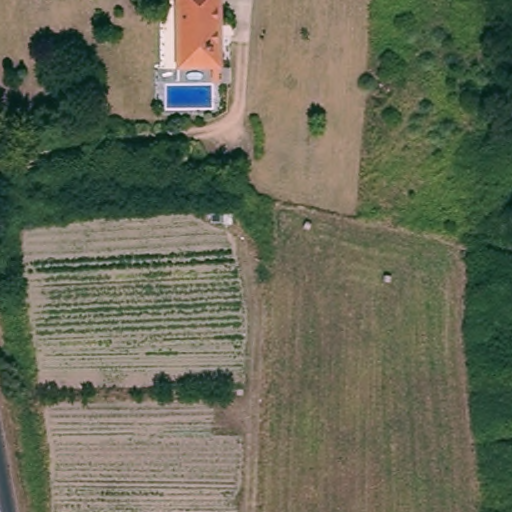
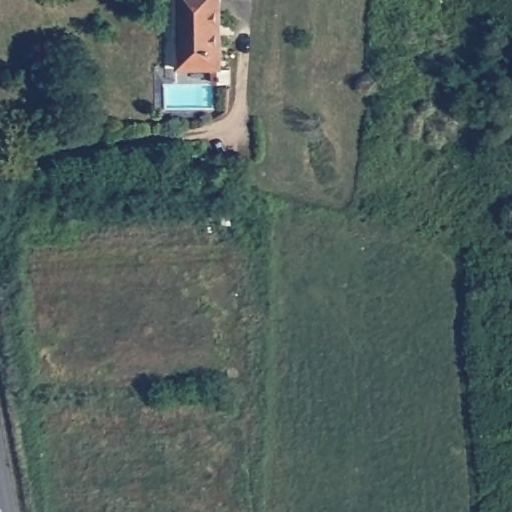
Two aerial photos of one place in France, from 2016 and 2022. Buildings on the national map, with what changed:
unchanged [(224,69),(180,69),(182,0),(226,0),(224,69)]

